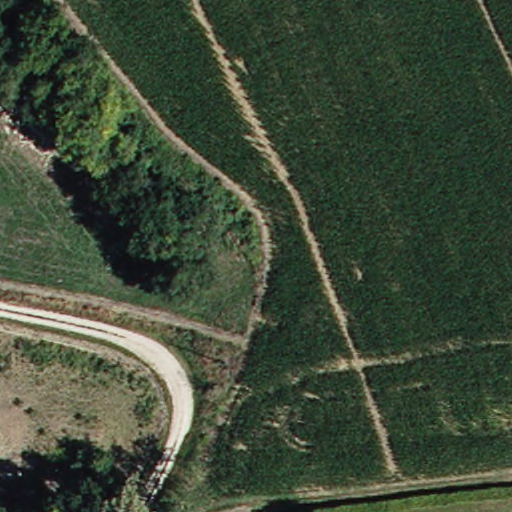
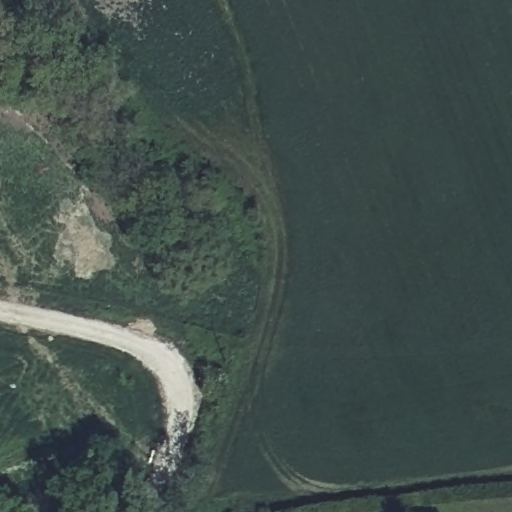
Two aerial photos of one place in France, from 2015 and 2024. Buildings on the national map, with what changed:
[]

